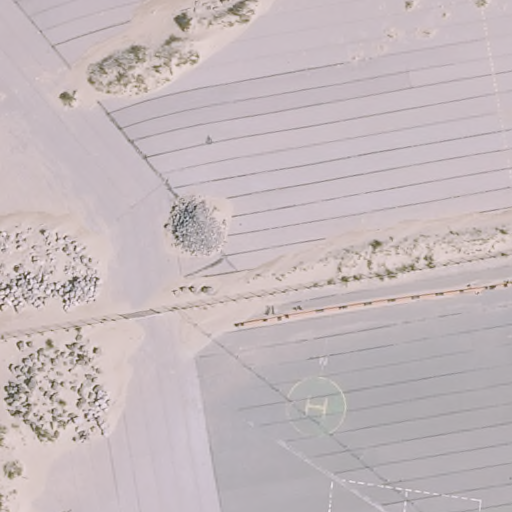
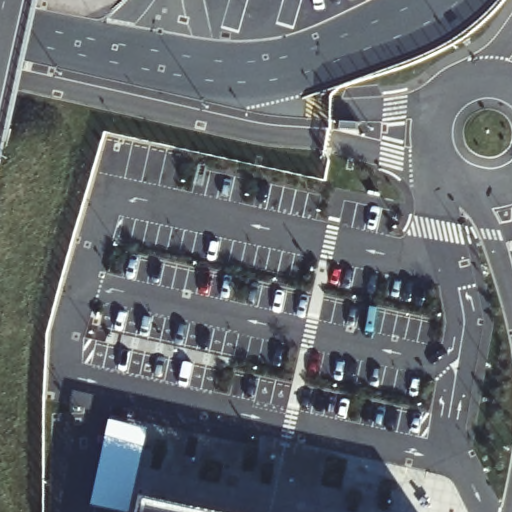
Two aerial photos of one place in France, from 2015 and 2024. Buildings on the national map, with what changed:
new [(131,512),(121,512),(90,506),(109,420),(149,429),(131,512)]
new [(192,512),(147,512),(149,502),(192,512)]

